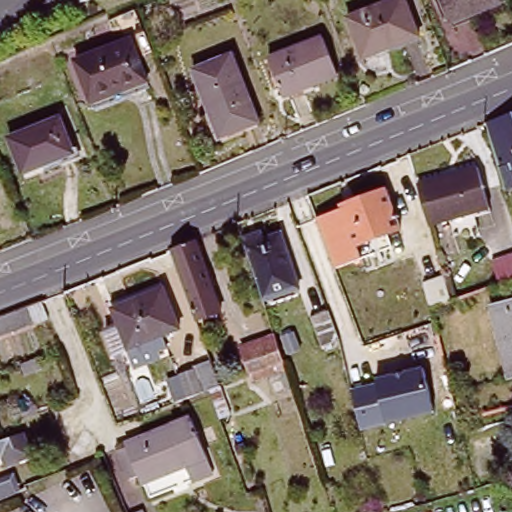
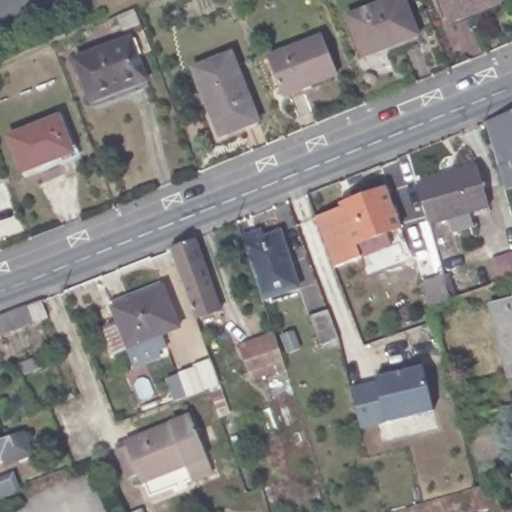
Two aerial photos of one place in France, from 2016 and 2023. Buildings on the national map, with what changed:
unchanged [(388,0),(404,0),(417,30),(418,34),(363,56),(361,53),(348,16),(388,0)]
unchanged [(451,20),(449,17),(442,0),(500,0),(501,0),(451,20)]
unchanged [(337,74),(283,95),(279,86),(267,56),(321,35),(333,64),(337,74)]
unchanged [(90,106),(74,63),(129,42),(146,84),(90,106)]
unchanged [(209,114),(191,66),(231,51),(250,98),(209,114)]
unchanged [(218,137),(209,114),(250,98),(259,121),(218,137)]
unchanged [(22,170),(8,135),(59,116),(73,151),(22,170)]
unchanged [(507,194),(487,127),(512,117),(512,193),(507,194)]
unchanged [(469,212),(471,222),(456,226),(453,217),(426,225),(414,184),(475,166),(487,206),(469,212)]
unchanged [(404,227),(359,243),(364,258),(338,266),(318,216),(387,183),(404,227)]
unchanged [(264,299),(254,268),(243,236),(253,234),(256,241),(282,233),(300,288),(264,299)]
unchanged [(196,320),(171,248),(196,238),(223,310),(196,320)]
unchanged [(431,307),(424,283),(446,276),(453,299),(431,307)]
unchanged [(111,354),(102,332),(116,326),(108,308),(160,287),(176,328),(111,354)]
unchanged [(504,376),(487,306),(512,300),(512,374),(504,376)]
unchanged [(49,321),(0,340),(0,319),(40,303),(49,321)]
unchanged [(322,345),(311,317),(330,309),(341,339),(322,345)]
unchanged [(251,373),(241,346),(276,334),(284,361),(251,373)]
unchanged [(209,389),(204,391),(195,365),(211,359),(220,385),(209,389)]
unchanged [(434,411),(393,420),(363,426),(351,387),(377,382),(376,378),(425,366),(434,411)]
unchanged [(191,486),(186,471),(143,488),(138,480),(129,483),(118,454),(126,451),(125,447),(190,420),(213,477),(191,486)]
unchanged [(73,449),(85,427),(97,433),(85,455),(73,449)]
unchanged [(2,459),(0,460),(0,435),(3,444),(24,437),(33,459),(6,470),(2,459)]
unchanged [(20,488),(0,496),(0,479),(13,473),(20,488)]
unchanged [(143,508),(144,512),(133,512),(143,508)]

